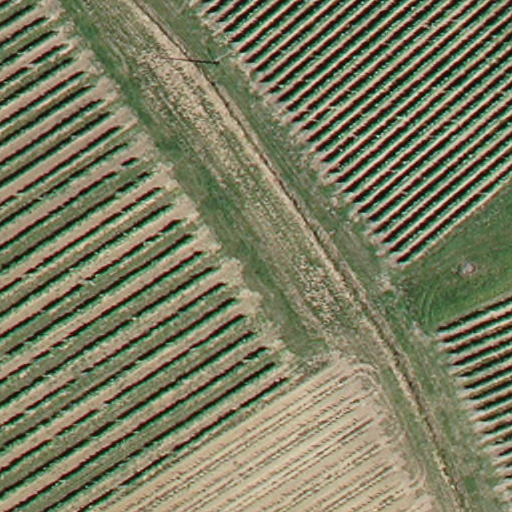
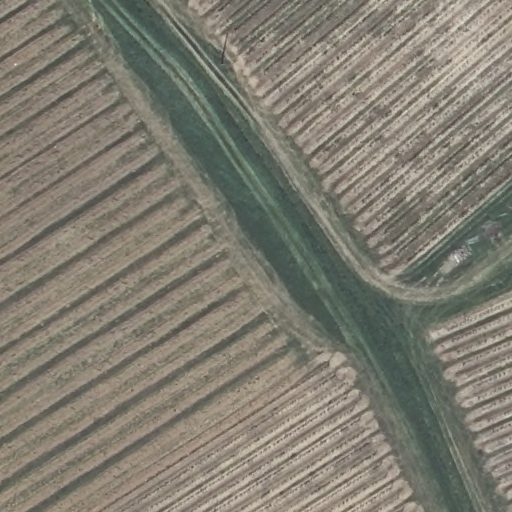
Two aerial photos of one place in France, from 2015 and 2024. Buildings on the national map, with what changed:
[]

